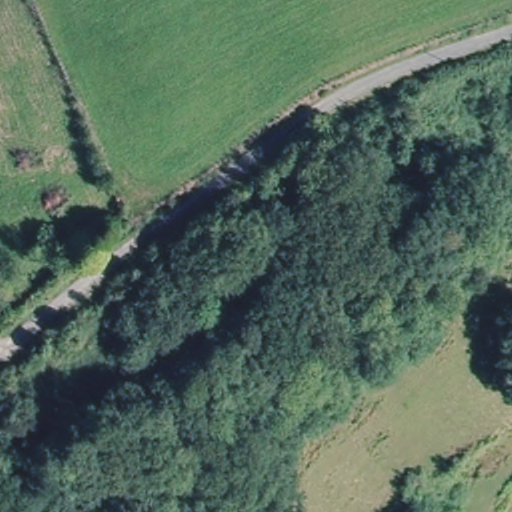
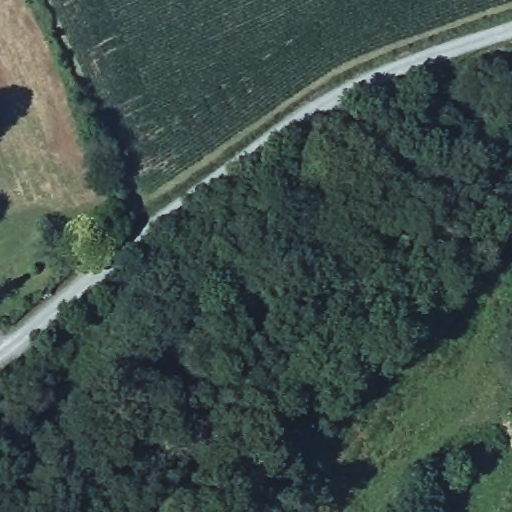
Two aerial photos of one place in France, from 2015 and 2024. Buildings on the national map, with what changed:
unchanged [(438,512),(421,512),(429,504),(438,512)]

